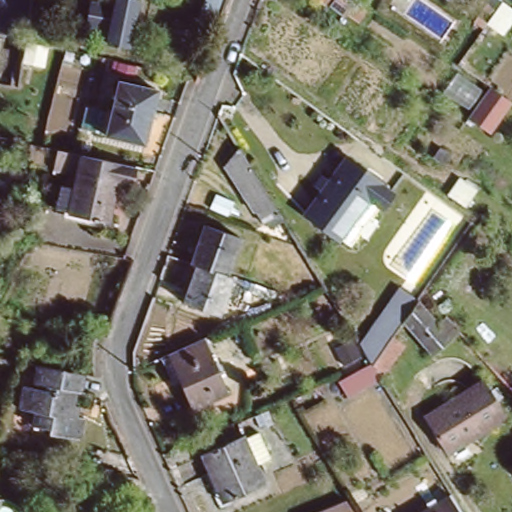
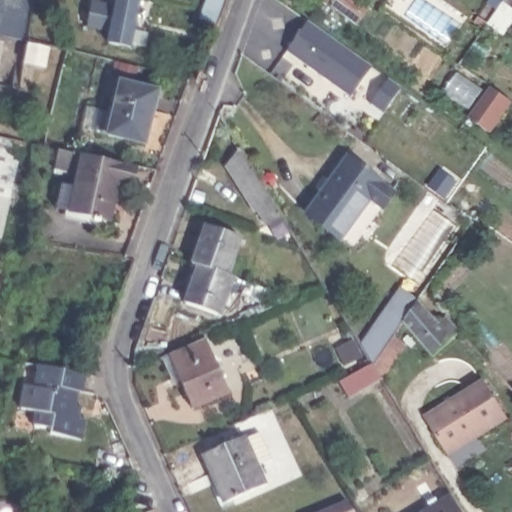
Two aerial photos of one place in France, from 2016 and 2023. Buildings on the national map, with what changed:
unchanged [(19,0),(11,39),(0,37),(0,29),(6,0),(19,0)]
unchanged [(110,5),(111,0),(138,0),(128,45),(102,39),(104,30),(80,24),(86,0),(110,5)]
unchanged [(319,0),(326,0),(324,4),(319,0)]
new [(508,0),(511,3),(508,6),(512,9),(512,34),(507,30),(502,37),(484,25),(496,10),(486,3),(488,0),(508,0)]
new [(307,23),(370,69),(350,96),(287,51),(307,23)]
unchanged [(118,82),(155,90),(143,142),(107,134),(118,82)]
unchanged [(469,119),(491,88),(511,102),(490,134),(469,119)]
unchanged [(241,143),(282,210),(267,220),(256,203),(247,189),(243,191),(226,161),(241,143)]
unchanged [(81,155),(128,165),(125,184),(112,181),(100,239),(65,230),(81,155)]
unchanged [(340,158),(391,190),(378,211),(365,203),(342,240),(303,215),(340,158)]
unchanged [(190,267),(203,227),(232,237),(239,240),(226,278),(226,279),(195,270),(190,268),(190,267)]
unchanged [(195,270),(226,279),(226,278),(232,280),(219,320),(182,308),(195,270)]
unchanged [(400,282),(415,295),(375,353),(362,339),(400,282)]
unchanged [(428,294),(447,315),(453,307),(467,322),(445,353),(411,316),(428,294)]
unchanged [(198,337),(222,390),(186,406),(162,353),(198,337)]
unchanged [(375,365),(392,341),(398,347),(380,373),(380,375),(347,395),(335,375),(370,360),(375,365)]
unchanged [(80,417),(84,418),(81,438),(50,432),(50,429),(33,425),(35,413),(20,411),(25,387),(32,388),(37,365),(84,372),(80,390),(76,390),(73,405),(81,406),(80,417)]
unchanged [(481,378),(505,415),(440,455),(416,417),(481,378)]
unchanged [(236,436),(238,441),(251,435),(263,460),(250,466),(260,485),(222,503),(208,475),(203,476),(193,456),(236,436)]
unchanged [(445,500),(453,512),(427,512),(445,500)]

